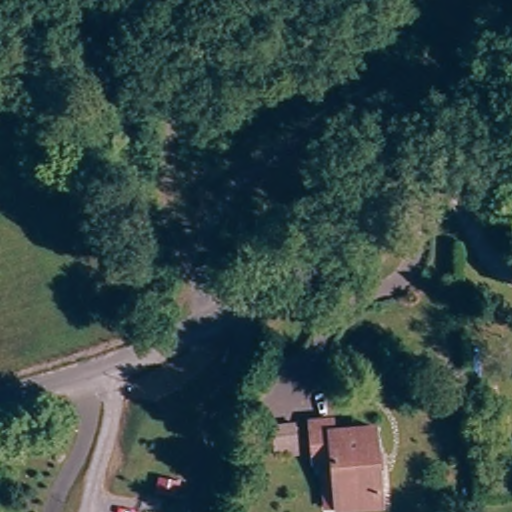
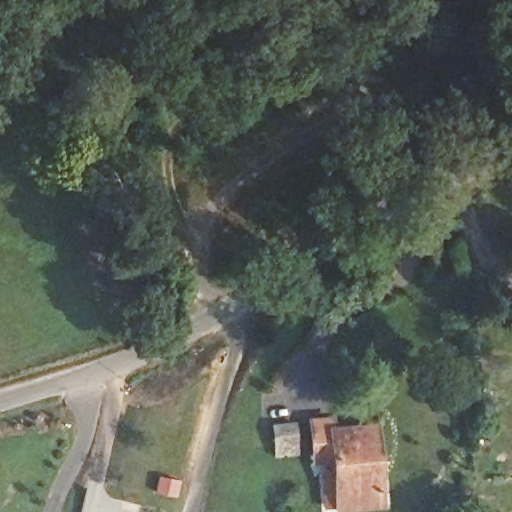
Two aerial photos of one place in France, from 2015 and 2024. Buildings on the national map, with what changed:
unchanged [(375,490),(331,492),(330,460),(310,460),(308,420),(327,419),(328,429),(370,427),(375,490)]
unchanged [(290,453),(270,455),(266,425),(287,423),(290,453)]
unchanged [(331,492),(375,490),(370,427),(377,427),(384,508),(335,512),(334,507),(323,508),(321,484),(331,481),(331,492)]

